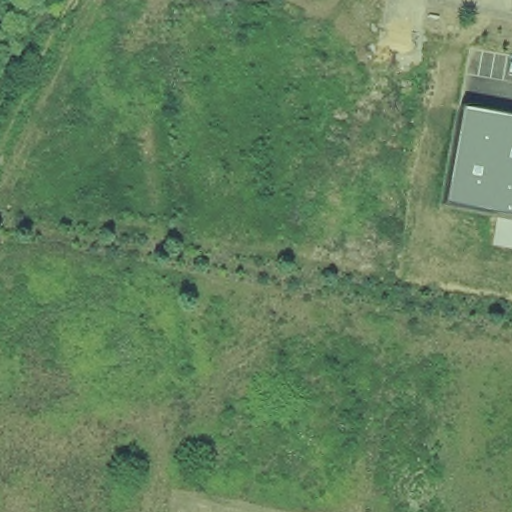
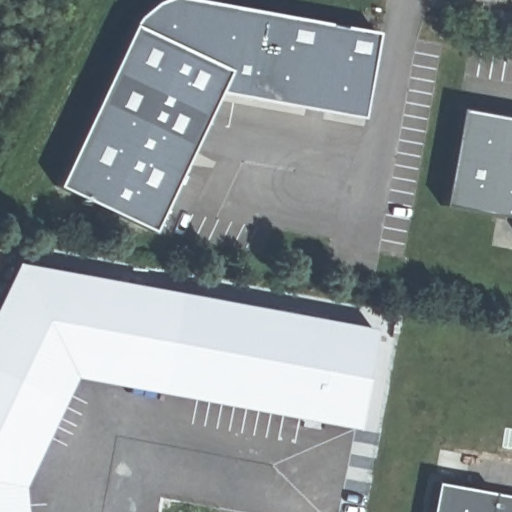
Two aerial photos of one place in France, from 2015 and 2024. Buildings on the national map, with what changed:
new [(136,14),(151,3),(159,0),(198,0),(380,31),(364,120),(214,93),(224,71),(133,26),(136,14)]
new [(214,93),(149,228),(55,185),(133,26),(224,71),(214,93)]
unchanged [(512,119),(512,217),(443,203),(461,111),(512,119)]
new [(376,440),(78,394),(31,495),(32,512),(0,512),(0,318),(21,275),(392,336),(376,440)]
new [(434,483),(489,493),(512,498),(512,512),(429,512),(434,483)]

